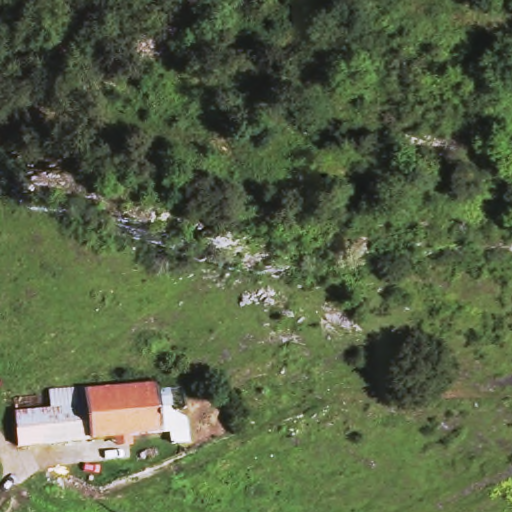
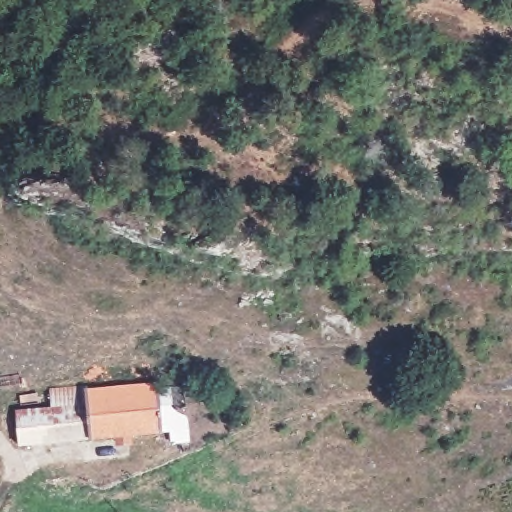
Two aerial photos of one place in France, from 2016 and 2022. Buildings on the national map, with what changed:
unchanged [(53,405),(51,388),(158,379),(159,395),(189,393),(191,415),(193,444),(172,446),(171,428),(17,441),(14,408),(53,405)]

